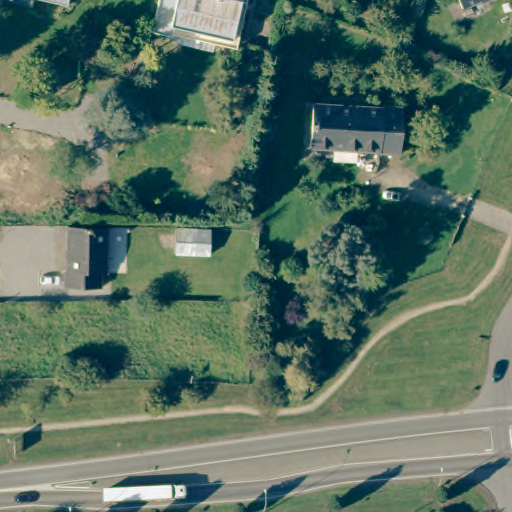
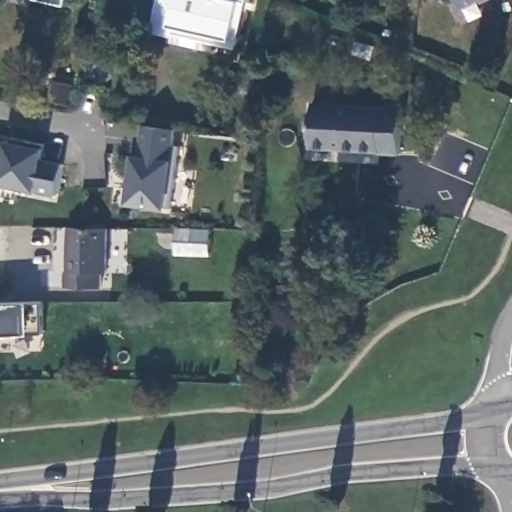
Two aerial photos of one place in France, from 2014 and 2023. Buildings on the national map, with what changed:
unchanged [(242,1),(232,39),(177,27),(174,37),(152,32),(159,0),(248,0),(248,3),(242,1)]
unchanged [(479,1),(461,10),(456,0),(488,0),(481,4),(479,1)]
unchanged [(400,155),(310,148),(314,100),(404,106),(400,155)]
new [(173,208),(167,207),(166,209),(128,204),(135,155),(143,155),(144,124),(177,129),(174,145),(181,145),(173,208)]
new [(38,191),(38,192),(0,184),(0,173),(2,165),(0,165),(0,141),(5,142),(6,140),(47,147),(44,159),(65,162),(58,195),(38,191)]
unchanged [(91,229),(108,229),(108,274),(101,274),(101,288),(64,288),(64,273),(67,273),(66,228),(91,229)]
unchanged [(205,231),(212,231),(212,255),(177,255),(177,230),(205,231)]

